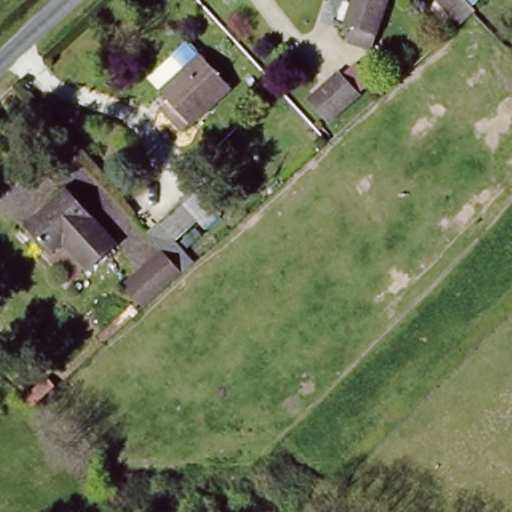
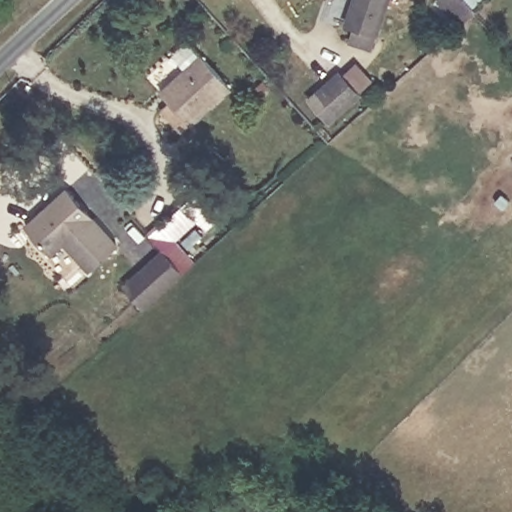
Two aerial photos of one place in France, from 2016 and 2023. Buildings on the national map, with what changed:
unchanged [(374,48),(353,41),(356,29),(346,26),(354,0),(389,0),(374,48)]
unchanged [(182,122),(166,105),(174,97),(167,90),(203,56),(227,81),(182,122)]
unchanged [(352,92),(322,117),(304,95),(333,70),(352,92)]
unchanged [(89,266),(65,240),(56,249),(33,225),(70,190),(117,241),(89,266)]
unchanged [(180,202),(195,219),(173,240),(192,260),(182,270),(161,246),(148,233),(180,202)]
unchanged [(182,270),(143,305),(123,283),(161,246),(182,270)]

